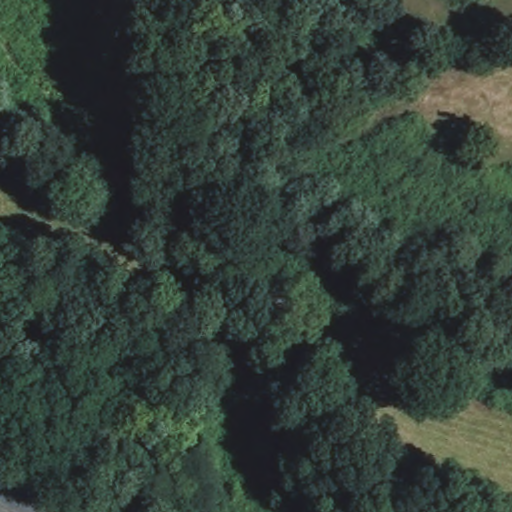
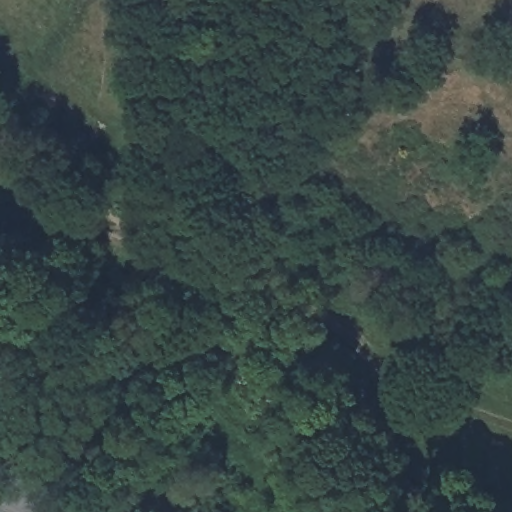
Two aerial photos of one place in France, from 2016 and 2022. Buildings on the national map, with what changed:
[]

